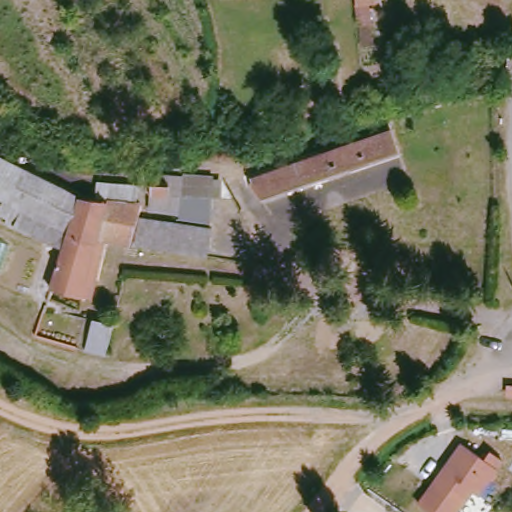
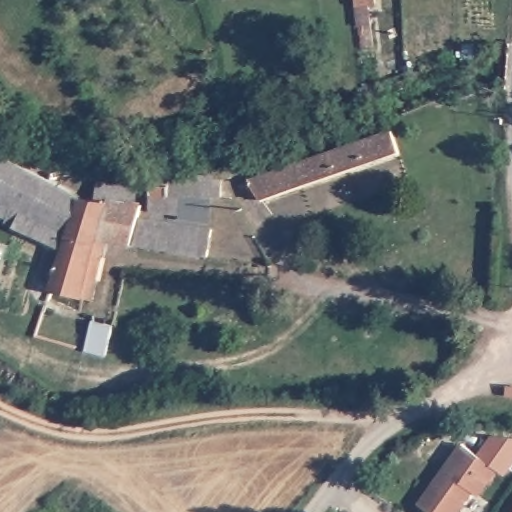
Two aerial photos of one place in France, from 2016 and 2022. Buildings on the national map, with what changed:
unchanged [(359,5),(358,0),(378,0),(378,2),(368,4),(370,22),(359,24),(356,6),(359,5)]
unchanged [(396,131),(394,155),(256,201),(251,178),(396,131)]
unchanged [(50,288),(64,250),(5,222),(7,215),(0,212),(0,208),(3,200),(0,198),(0,159),(1,157),(73,191),(98,198),(103,181),(141,186),(143,177),(154,176),(183,178),(183,174),(213,177),(213,181),(221,182),(220,199),(152,194),(138,192),(133,208),(139,210),(138,217),(212,230),(208,257),(128,245),(96,238),(81,297),(50,288)]
unchanged [(53,313),(46,339),(35,336),(43,311),(53,313)]
unchanged [(117,332),(108,361),(88,355),(96,325),(117,332)]
unchanged [(444,468),(449,472),(469,448),(486,462),(489,457),(501,464),(478,496),(473,492),(458,512),(429,512),(419,504),(444,468)]

